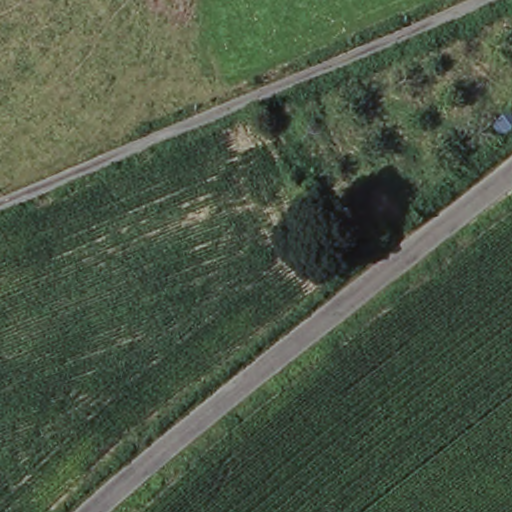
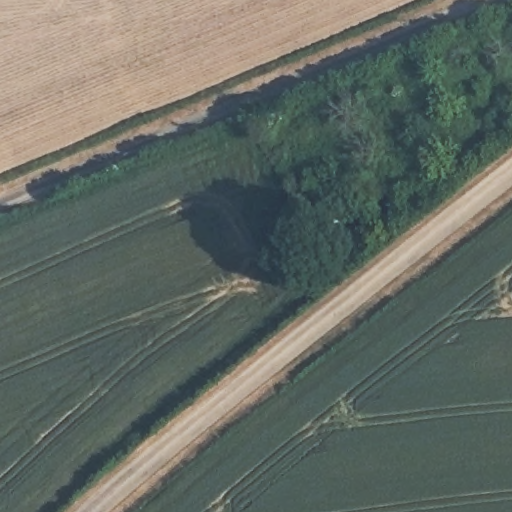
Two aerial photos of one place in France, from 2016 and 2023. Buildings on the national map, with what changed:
unchanged [(511,116),(512,118),(512,133),(505,138),(496,125),(511,116)]

